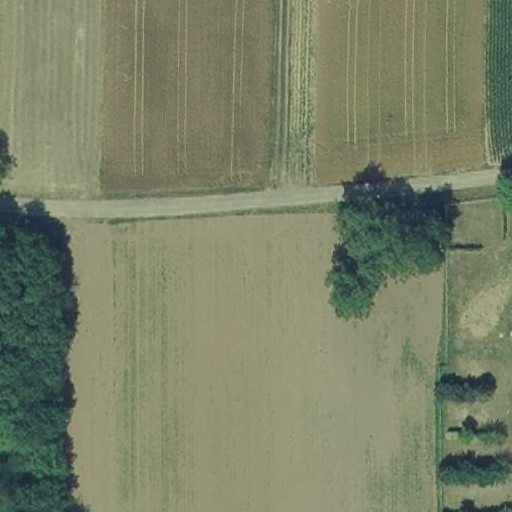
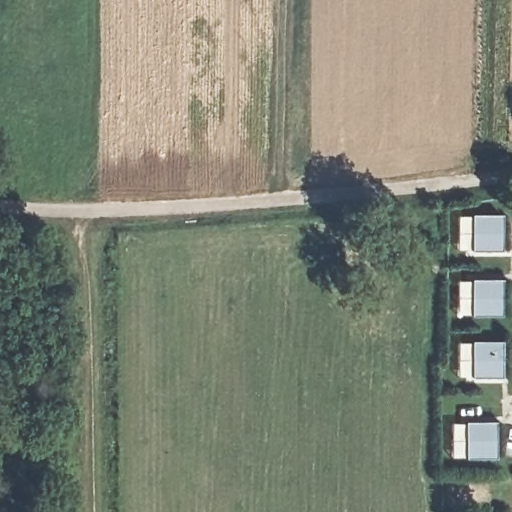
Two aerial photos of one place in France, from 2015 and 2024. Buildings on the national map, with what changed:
new [(508,251),(474,252),(474,215),(508,217),(508,251)]
new [(506,315),(473,313),(475,280),(507,280),(506,315)]
new [(505,380),(474,378),(476,341),(507,341),(505,380)]
new [(499,458),(471,457),(470,421),(501,421),(499,458)]

